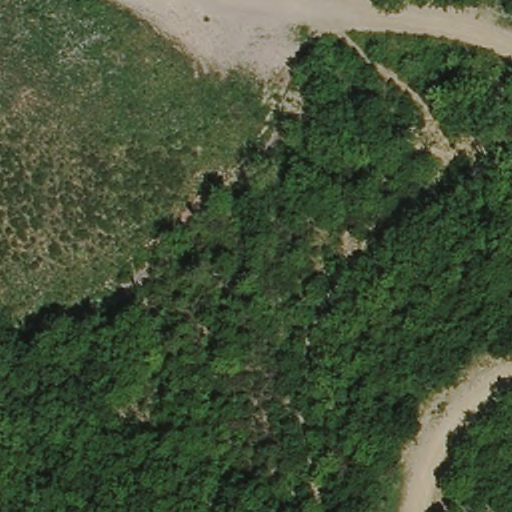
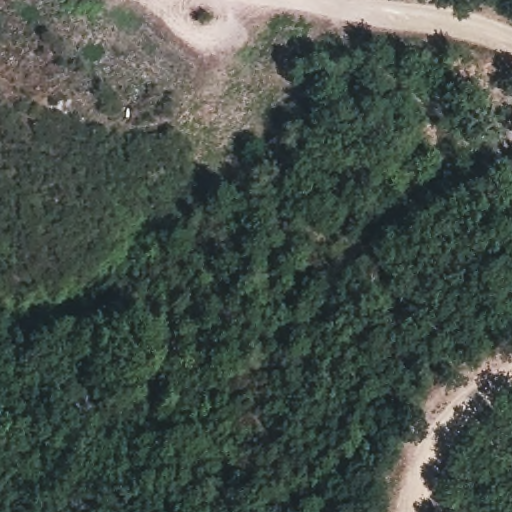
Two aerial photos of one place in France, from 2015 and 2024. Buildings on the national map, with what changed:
unchanged [(233,338),(243,348),(233,357),(224,347),(233,338)]

